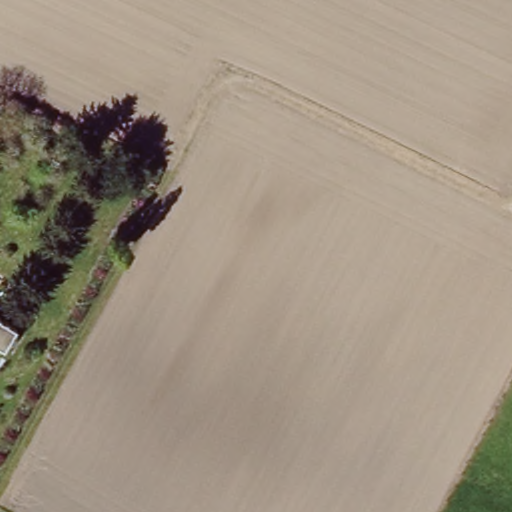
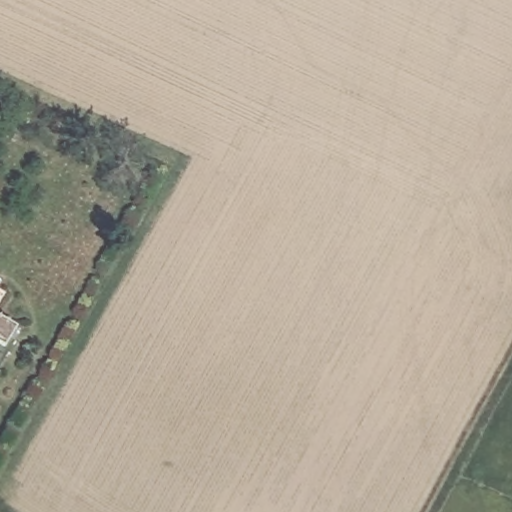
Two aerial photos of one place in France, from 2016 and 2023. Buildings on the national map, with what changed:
unchanged [(1,301),(0,302),(0,301),(1,301)]
unchanged [(14,328),(3,348),(0,347),(0,321),(14,328)]

